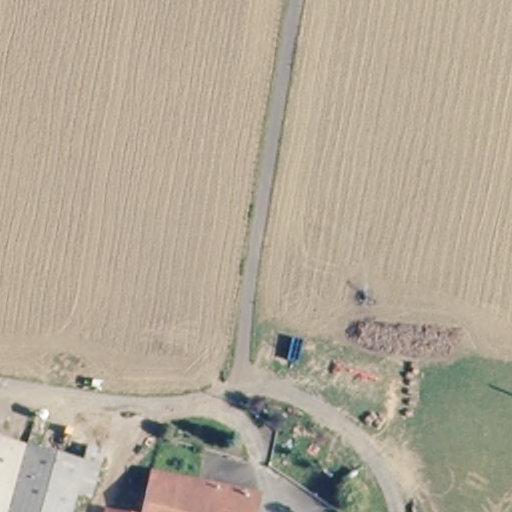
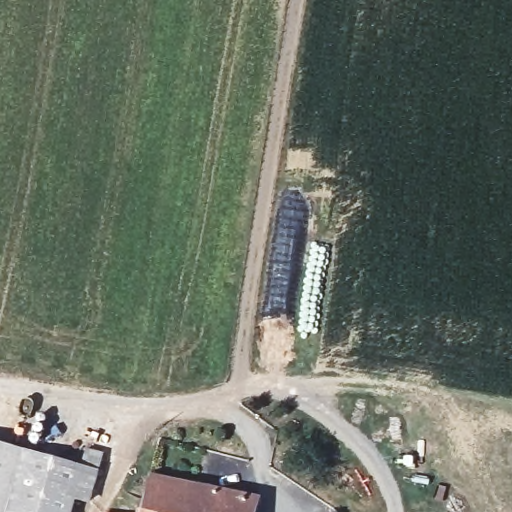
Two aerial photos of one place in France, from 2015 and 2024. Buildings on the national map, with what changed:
unchanged [(77,494),(72,512),(0,512),(0,446),(21,450),(75,462),(84,442),(104,447),(89,495),(77,494)]
unchanged [(183,485),(249,499),(246,512),(147,512),(153,480),(183,485)]

